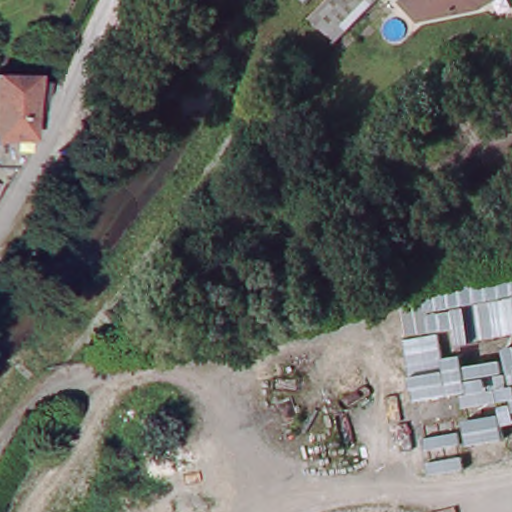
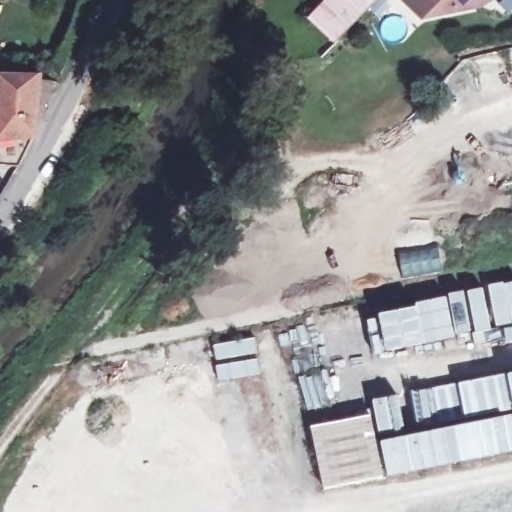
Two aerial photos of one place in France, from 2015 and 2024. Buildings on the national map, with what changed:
unchanged [(342,41),(316,17),(332,0),(349,0),(367,16),(342,41)]
unchanged [(349,0),(383,0),(367,16),(349,0)]
unchanged [(419,16),(401,0),(484,0),(477,4),(419,16)]
unchanged [(38,143),(22,171),(0,170),(0,142),(5,142),(5,89),(0,89),(0,77),(1,76),(14,77),(45,79),(43,88),(57,89),(56,100),(42,99),(39,141),(38,143)]
new [(486,286),(512,281),(512,340),(505,341),(502,326),(494,328),(472,332),(456,336),(373,354),(365,318),(376,315),(376,312),(446,294),(464,290),(486,286)]
new [(218,380),(215,362),(212,344),(255,336),(256,355),(260,373),(218,380)]
new [(512,406),(505,372),(512,371),(512,406)]
new [(512,406),(512,409),(463,415),(461,407),(456,381),(505,372),(512,406)]
new [(456,381),(461,407),(451,409),(453,417),(417,423),(410,390),(456,381)]
new [(386,476),(322,489),(308,425),(372,412),(370,398),(398,393),(404,428),(377,433),(378,438),(386,476)]
new [(512,451),(386,476),(378,438),(512,413),(512,451)]

